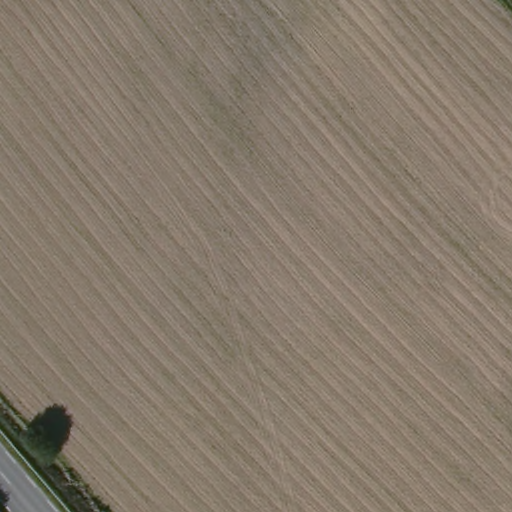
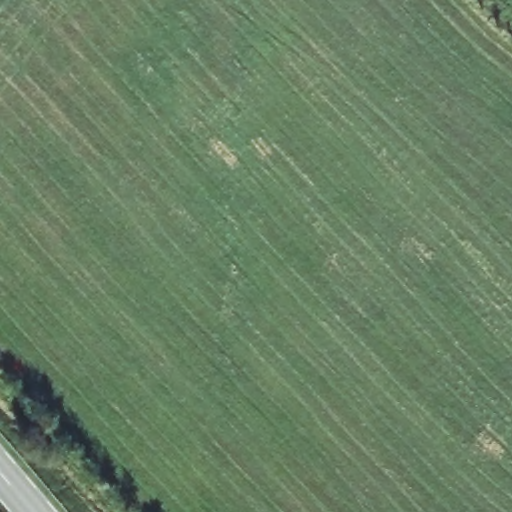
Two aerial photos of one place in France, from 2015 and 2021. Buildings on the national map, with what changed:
[]

